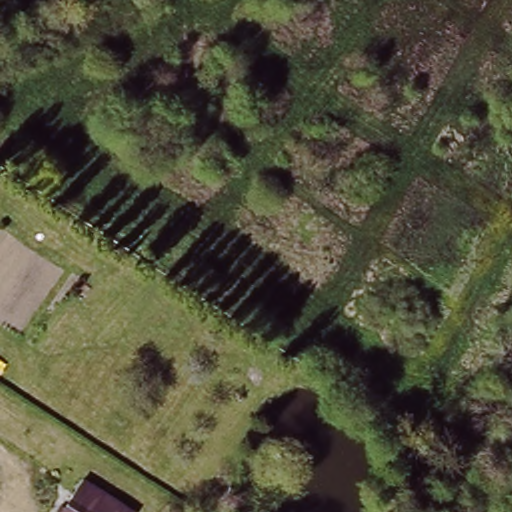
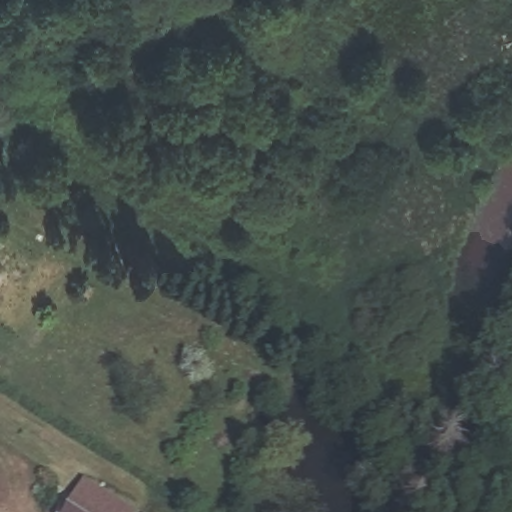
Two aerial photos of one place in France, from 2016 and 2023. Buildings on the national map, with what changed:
unchanged [(82,477),(135,512),(60,512),(82,477)]

